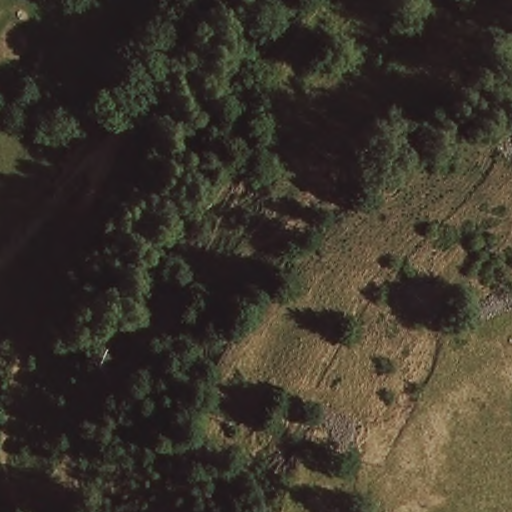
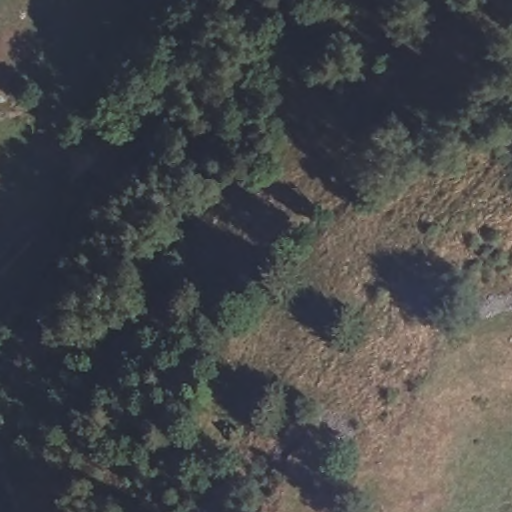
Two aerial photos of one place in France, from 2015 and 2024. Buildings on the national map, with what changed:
[]

